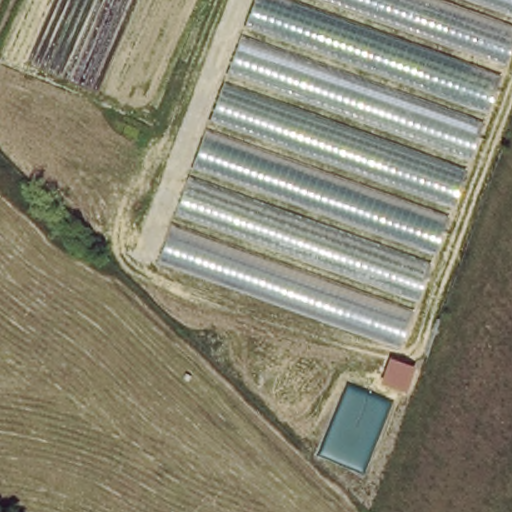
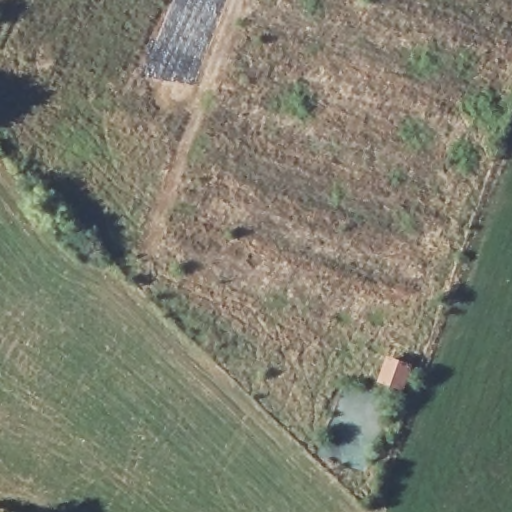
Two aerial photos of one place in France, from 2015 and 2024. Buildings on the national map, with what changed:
demolished [(158,267),(255,0),(512,0),(512,39),(398,349),(158,267)]
unchanged [(404,393),(378,387),(388,356),(415,364),(404,393)]

